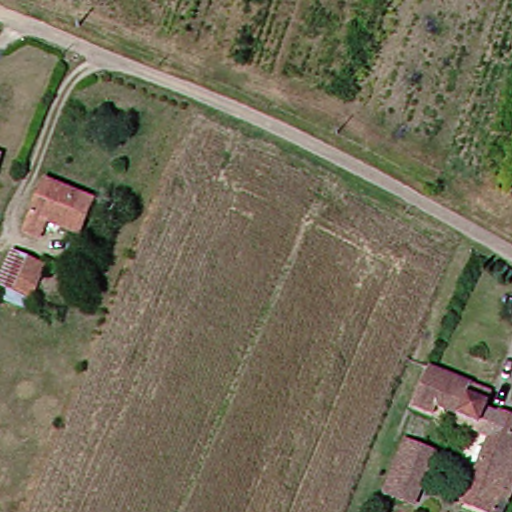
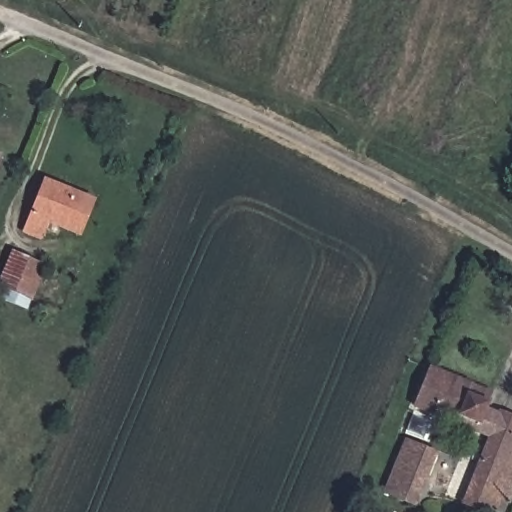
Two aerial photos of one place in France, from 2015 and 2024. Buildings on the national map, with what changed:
unchanged [(7,158),(0,175),(0,155),(7,158)]
unchanged [(85,235),(53,221),(46,239),(30,232),(47,191),(51,181),(62,185),(100,201),(85,235)]
unchanged [(45,266),(28,309),(6,299),(10,288),(1,284),(15,253),(45,266)]
unchanged [(492,441),(477,435),(457,427),(460,420),(437,410),(434,417),(415,409),(430,372),(474,391),(491,398),(488,407),(485,413),(501,420),(502,418),(512,423),(512,499),(506,512),(476,512),(473,511),(465,507),(473,488),(479,473),(492,441)]
unchanged [(436,455),(415,504),(387,491),(407,443),(436,455)]

